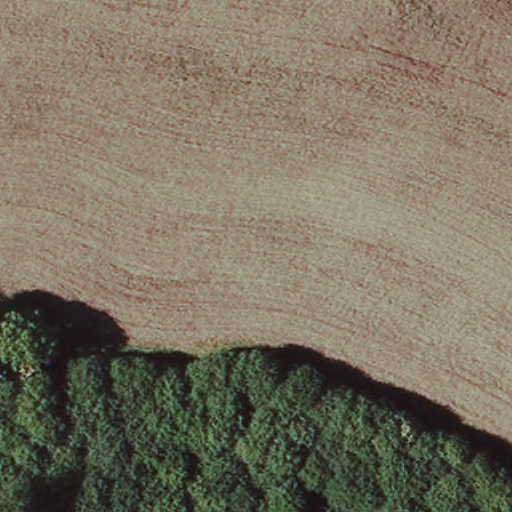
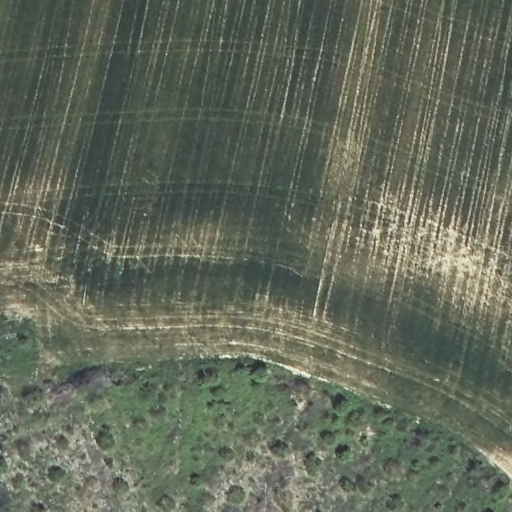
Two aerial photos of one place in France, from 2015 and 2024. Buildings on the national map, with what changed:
[]

